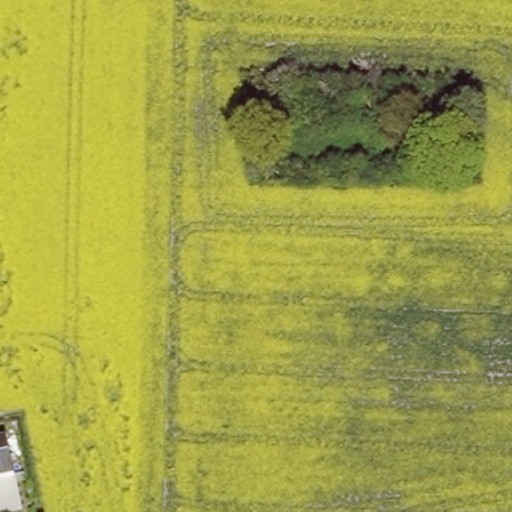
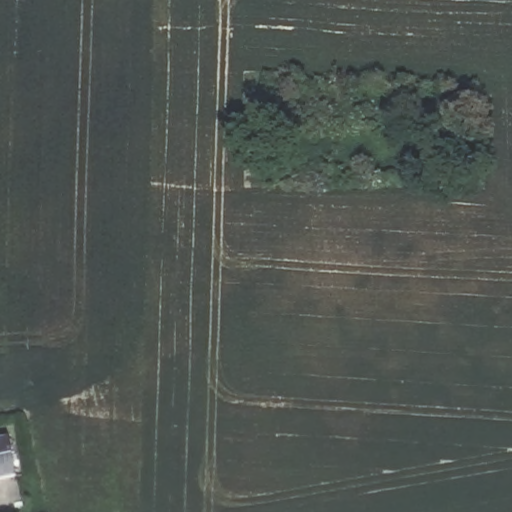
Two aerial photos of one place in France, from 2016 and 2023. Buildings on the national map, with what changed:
unchanged [(16,479),(0,483),(0,440),(7,439),(16,479)]

